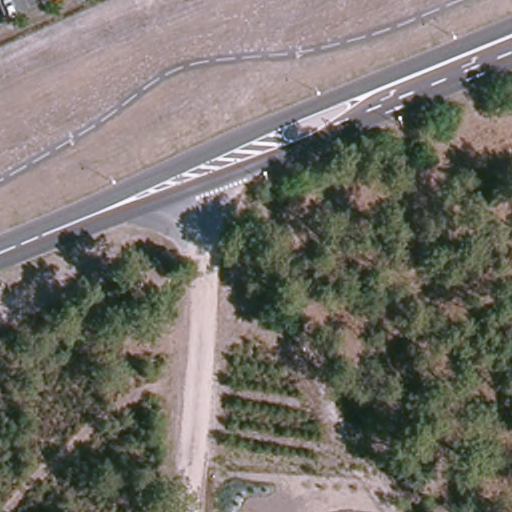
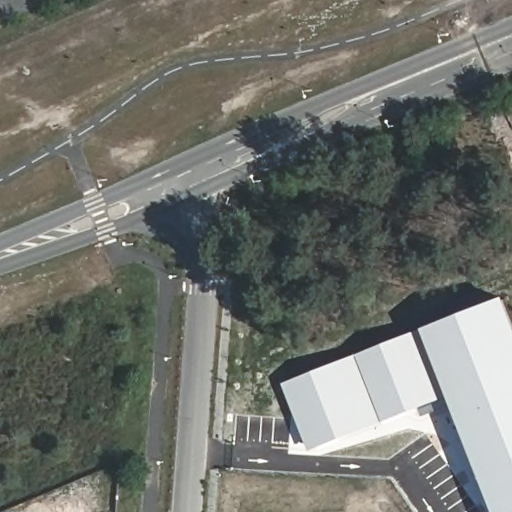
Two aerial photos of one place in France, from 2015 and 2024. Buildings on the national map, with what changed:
new [(507,295),(512,308),(512,512),(499,512),(452,395),(311,450),(284,382),(507,295)]

